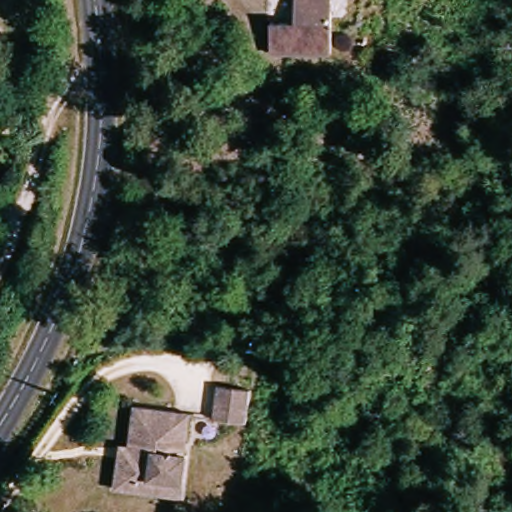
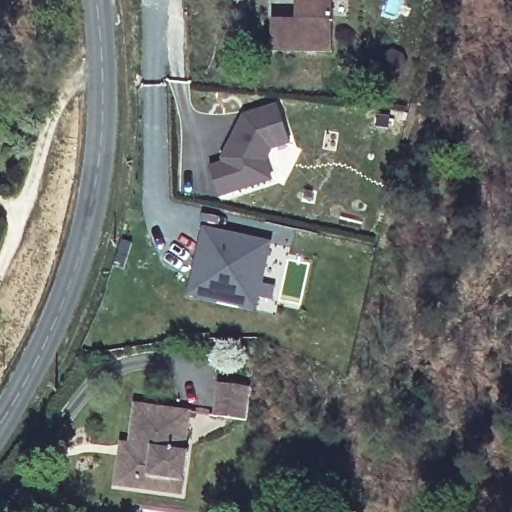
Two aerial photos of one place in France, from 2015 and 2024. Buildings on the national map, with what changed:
unchanged [(282,50),(281,18),(306,18),(306,0),(342,0),(341,51),(282,50)]
new [(226,167),(224,162),(245,119),(279,108),(292,145),(273,151),(267,165),(273,182),(221,200),(211,172),(226,167)]
new [(205,232),(271,246),(257,312),(191,297),(205,232)]
unchanged [(244,421),(243,421),(210,416),(215,384),(247,388),(244,421)]
unchanged [(113,489),(114,485),(117,458),(118,446),(126,447),(131,406),(186,412),(181,453),(185,454),(181,482),(180,496),(113,489)]

